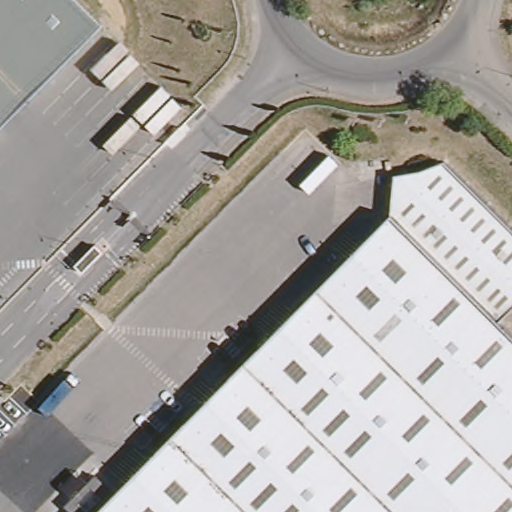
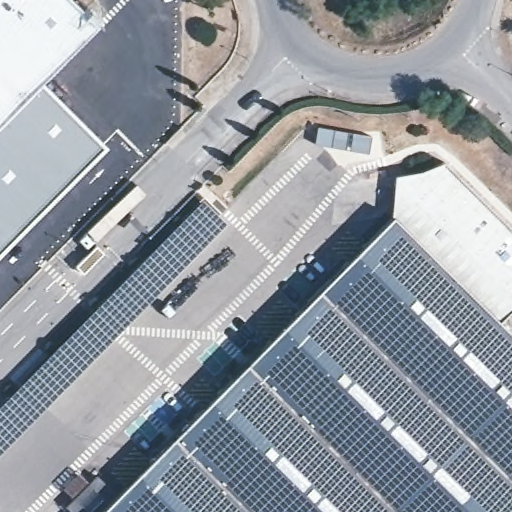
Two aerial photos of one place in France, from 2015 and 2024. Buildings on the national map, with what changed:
unchanged [(0,120),(0,0),(66,0),(93,27),(0,120)]
new [(103,143),(0,247),(0,120),(40,80),(103,143)]
unchanged [(492,323),(512,343),(512,512),(93,512),(389,213),(386,177),(411,171),(436,163),(512,238),(512,303),(492,323)]

